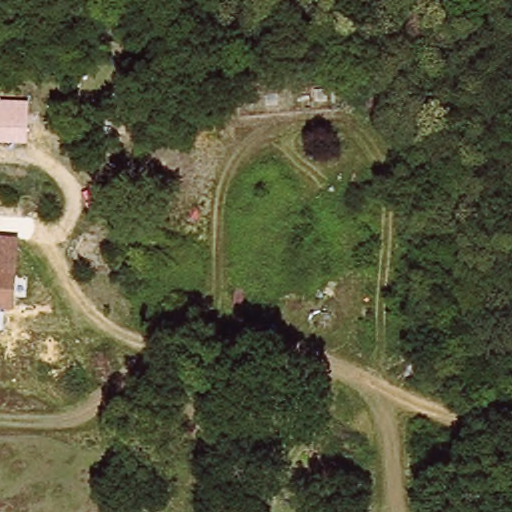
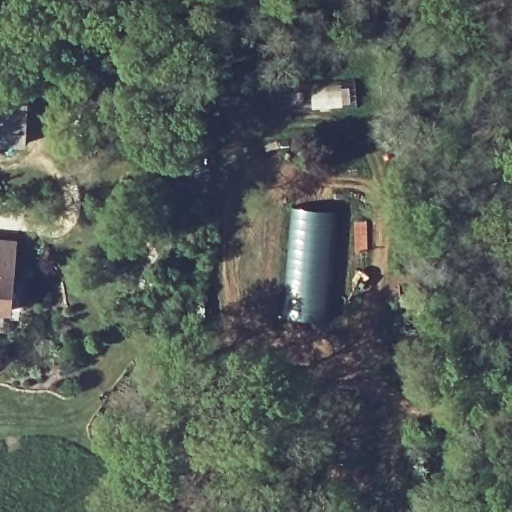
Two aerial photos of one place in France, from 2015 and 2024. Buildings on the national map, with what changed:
unchanged [(27,146),(0,144),(0,103),(29,105),(27,146)]
new [(289,206),(337,210),(334,279),(339,323),(282,321),(289,206)]
unchanged [(15,274),(37,275),(33,309),(12,309),(9,335),(0,334),(0,240),(15,241),(15,274)]

